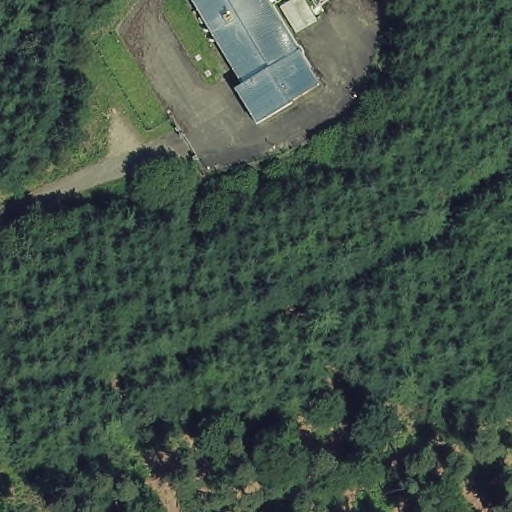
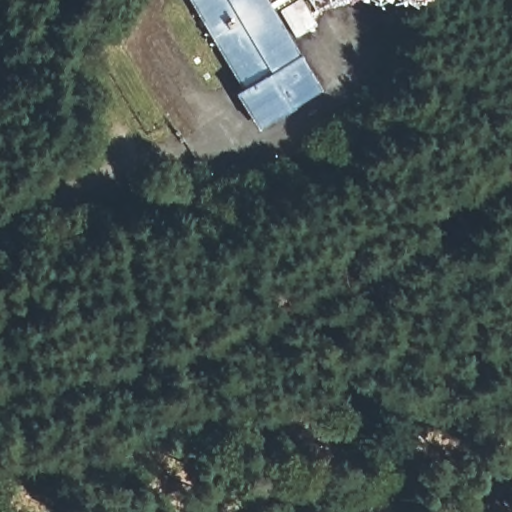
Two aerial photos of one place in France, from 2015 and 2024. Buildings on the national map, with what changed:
unchanged [(250,121),(192,0),(262,0),(310,90),(250,121)]

